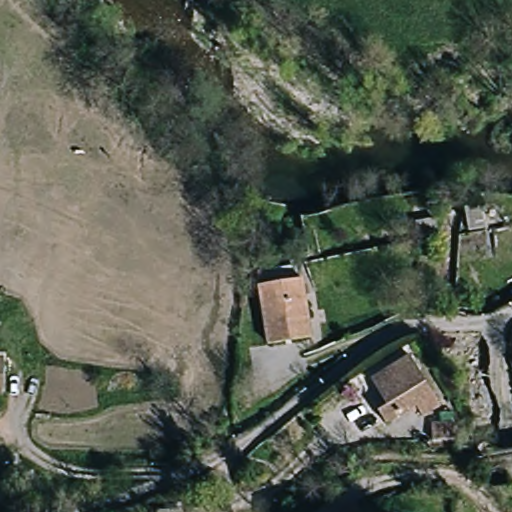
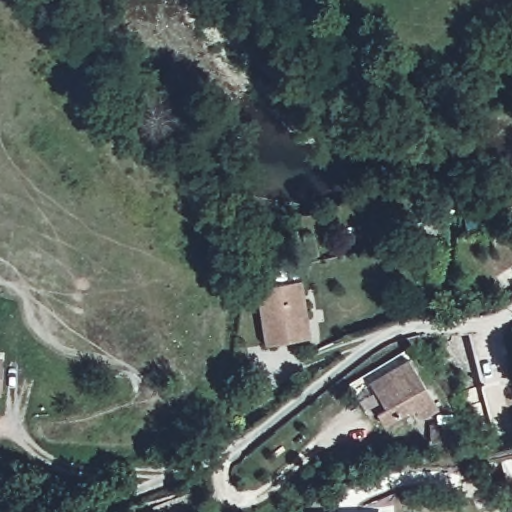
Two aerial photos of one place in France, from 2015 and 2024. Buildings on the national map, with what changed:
unchanged [(505,203),(506,225),(486,227),(470,228),(469,206),(505,203)]
unchanged [(312,335),(268,341),(261,287),(304,280),(312,335)]
unchanged [(7,357),(0,396),(0,357),(7,357)]
unchanged [(442,404),(426,416),(419,407),(391,425),(379,413),(386,408),(373,383),(411,358),(442,404)]

